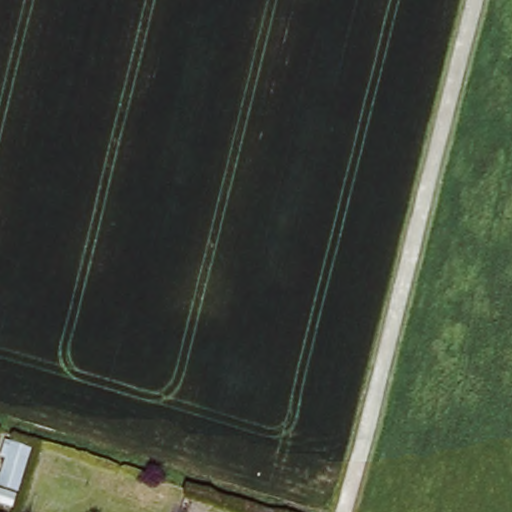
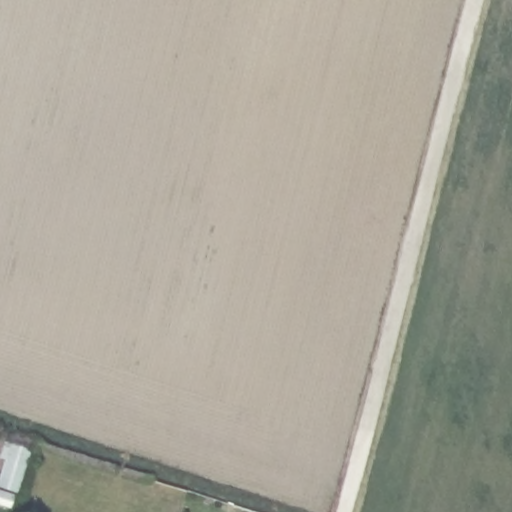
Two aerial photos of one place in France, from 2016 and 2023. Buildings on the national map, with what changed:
[]

